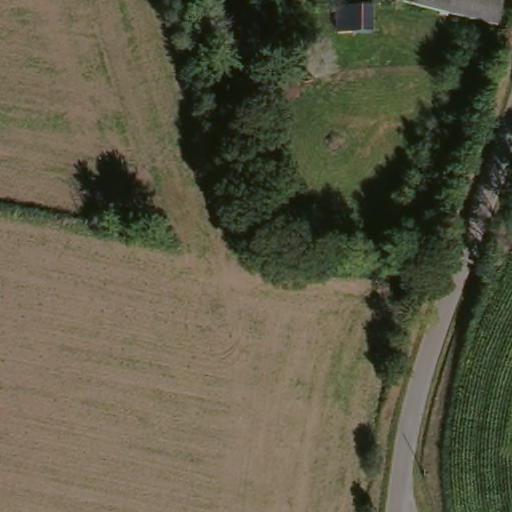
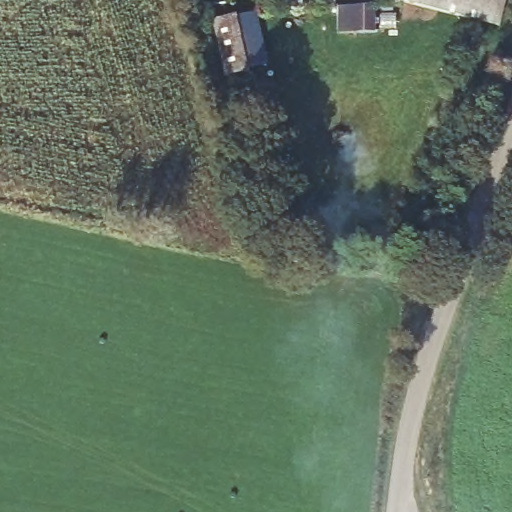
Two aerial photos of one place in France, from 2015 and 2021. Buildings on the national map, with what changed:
unchanged [(401,5),(402,0),(504,0),(496,30),(401,5)]
new [(335,33),(335,7),(375,6),(375,33),(335,33)]
demolished [(230,13),(242,12),(252,72),(245,73),(240,74),(230,76),(219,15),(230,13)]
new [(214,20),(255,13),(266,66),(225,75),(214,20)]

